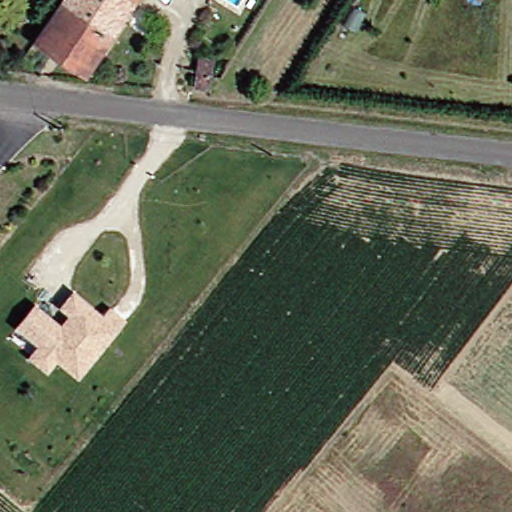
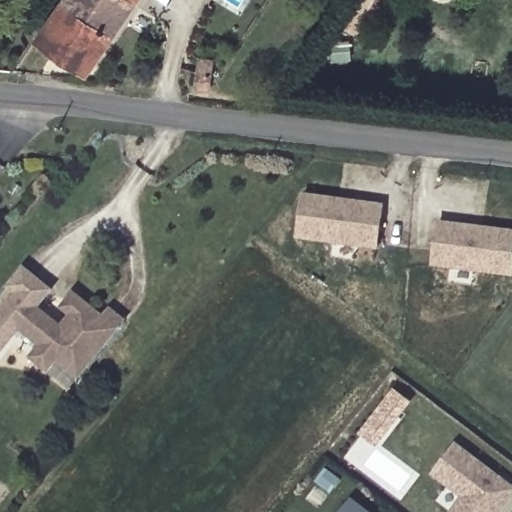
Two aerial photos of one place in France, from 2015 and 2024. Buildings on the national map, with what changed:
unchanged [(80,72),(28,37),(54,0),(128,0),(80,72)]
unchanged [(213,55),(211,64),(216,65),(214,72),(211,71),(209,82),(197,80),(202,54),(213,55)]
new [(302,195),(381,206),(375,247),(296,236),(302,195)]
new [(512,232),(512,274),(434,264),(439,222),(512,232)]
unchanged [(28,357),(37,346),(15,327),(36,302),(62,324),(69,315),(59,307),(74,289),(103,314),(110,306),(127,320),(78,379),(57,362),(47,373),(28,357)]
new [(434,475),(457,444),(512,486),(512,497),(500,512),(454,512),(465,498),(434,475)]
new [(367,512),(341,512),(350,499),(367,512)]

